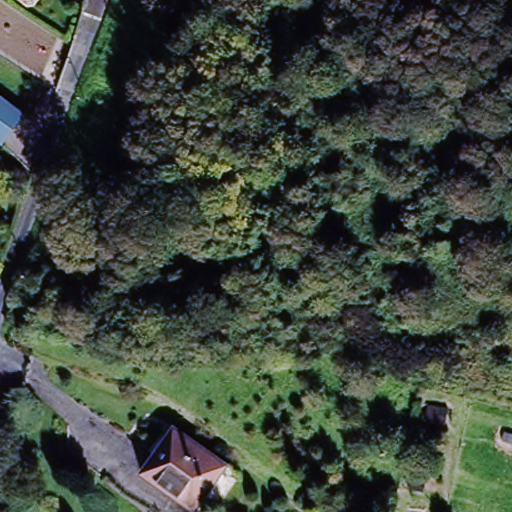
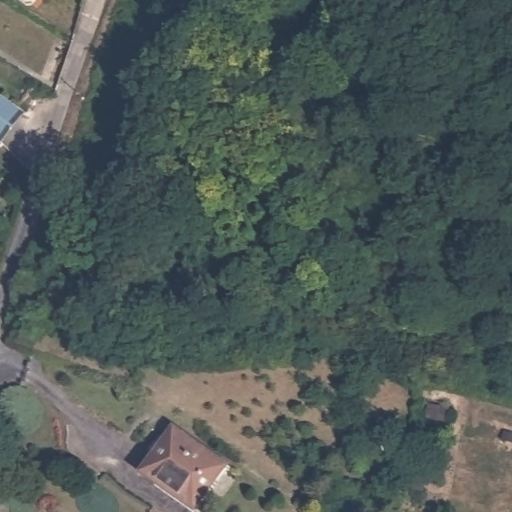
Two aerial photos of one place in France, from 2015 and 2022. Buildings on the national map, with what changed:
unchanged [(20,119),(0,146),(0,104),(20,119)]
unchanged [(228,465),(203,506),(165,482),(161,487),(143,475),(172,428),(228,465)]

